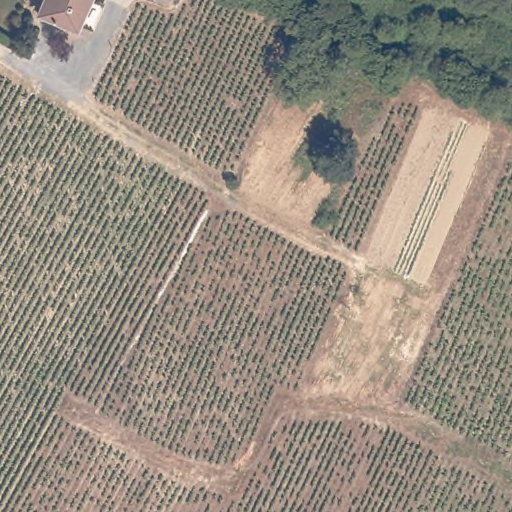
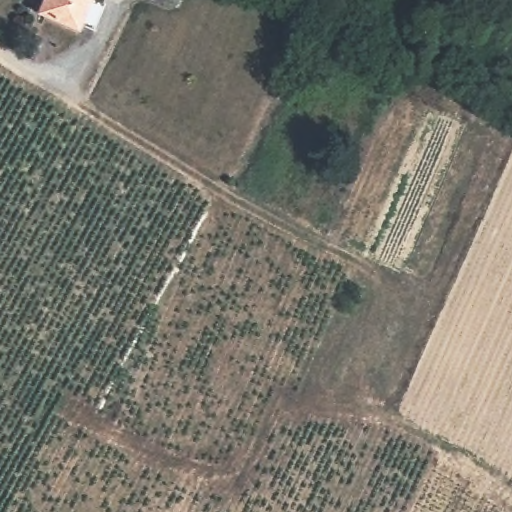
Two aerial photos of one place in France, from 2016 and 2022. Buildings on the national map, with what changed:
unchanged [(41,0),(103,0),(104,1),(94,24),(83,19),(79,27),(37,9),(41,0)]

